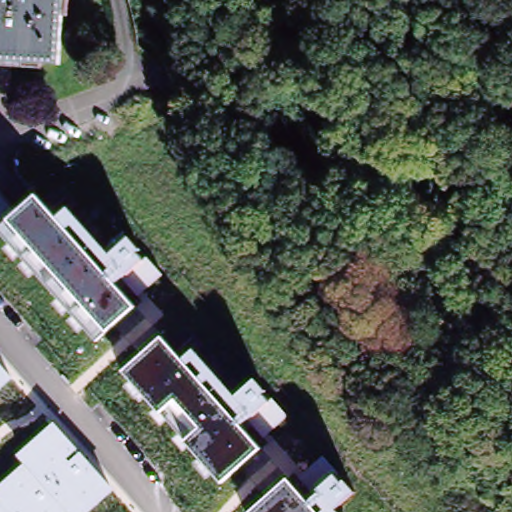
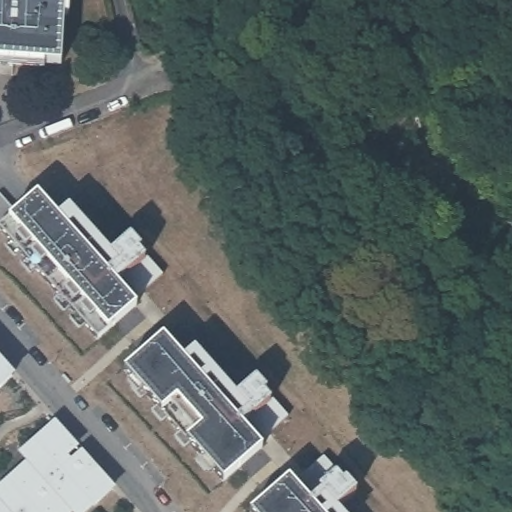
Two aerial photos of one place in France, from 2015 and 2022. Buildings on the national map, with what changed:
unchanged [(0,59),(0,0),(61,0),(57,62),(0,59)]
unchanged [(19,208),(36,193),(56,215),(70,205),(112,252),(130,236),(140,247),(162,274),(135,298),(132,300),(136,304),(107,331),(96,341),(0,232),(0,197),(19,208)]
unchanged [(236,395),(255,378),(288,415),(263,439),(261,447),(222,482),(123,369),(162,335),(182,358),(195,348),(236,395)]
unchanged [(0,391),(0,362),(14,378),(0,391)]
unchanged [(0,512),(0,483),(24,461),(16,455),(54,422),(115,490),(90,512),(0,512)]
unchanged [(286,476),(309,501),(320,493),(317,489),(336,474),(341,480),(344,477),(356,491),(337,509),(339,512),(250,512),(250,511),(286,476)]

